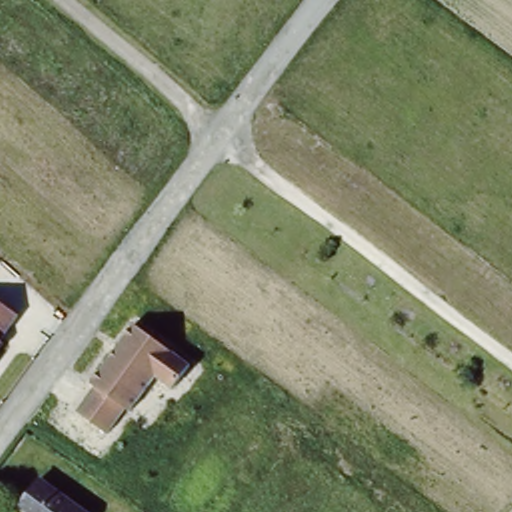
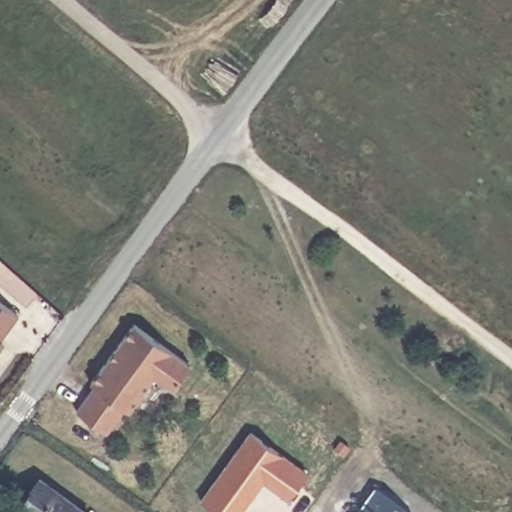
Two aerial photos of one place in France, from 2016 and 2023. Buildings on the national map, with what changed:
unchanged [(19,315),(1,339),(4,341),(0,347),(0,300),(19,315)]
unchanged [(94,385),(90,381),(133,321),(189,363),(172,388),(155,377),(130,410),(125,406),(108,431),(77,409),(94,385)]
new [(307,473),(288,499),(261,479),(256,486),(259,488),(241,512),(217,512),(202,501),(250,432),(307,473)]
unchanged [(17,512),(39,482),(79,512),(17,512)]

